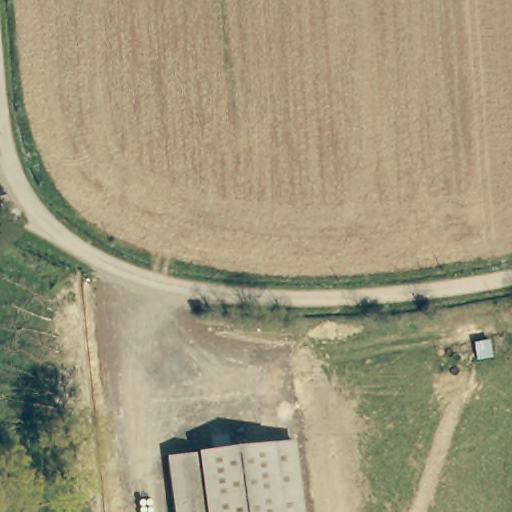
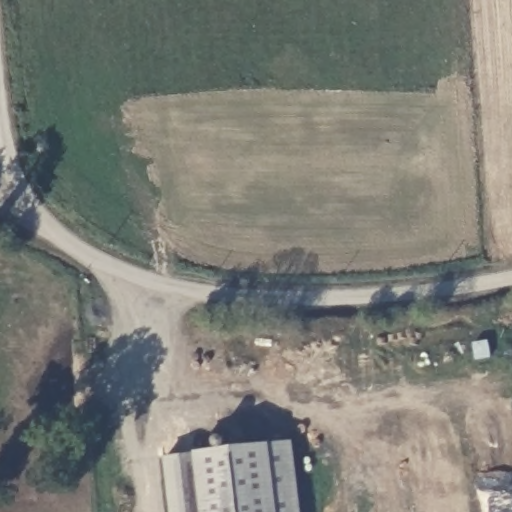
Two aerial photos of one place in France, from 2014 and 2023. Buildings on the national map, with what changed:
unchanged [(296,443),(304,512),(174,512),(168,457),(296,443)]

